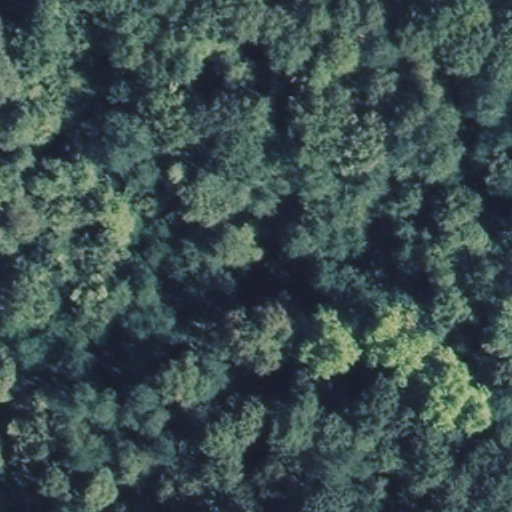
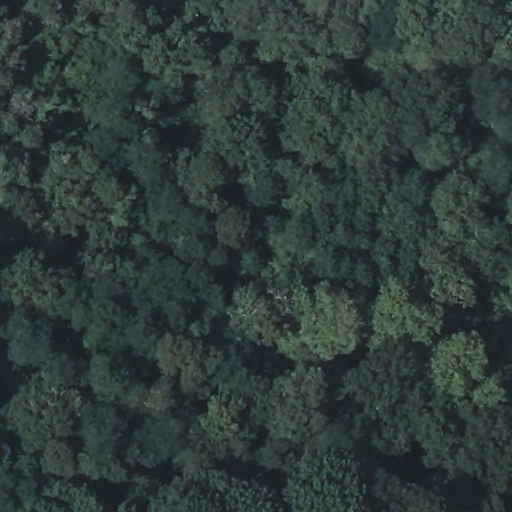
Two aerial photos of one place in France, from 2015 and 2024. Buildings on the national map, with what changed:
[]

